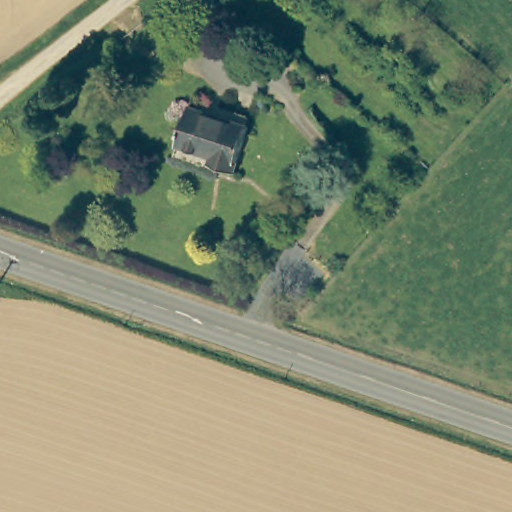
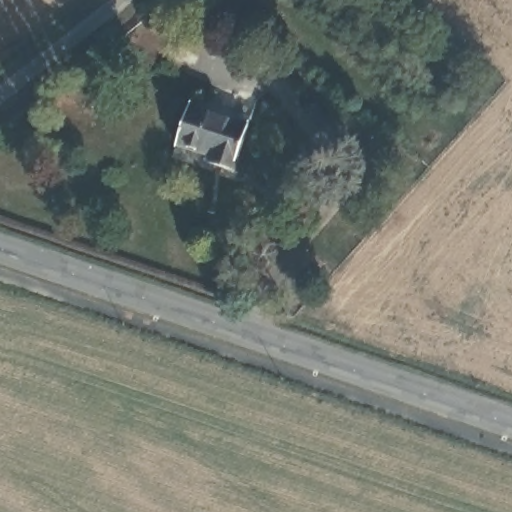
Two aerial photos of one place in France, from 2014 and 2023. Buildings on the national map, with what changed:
unchanged [(247,122),(232,172),(206,167),(209,155),(171,144),(184,104),(247,122)]

